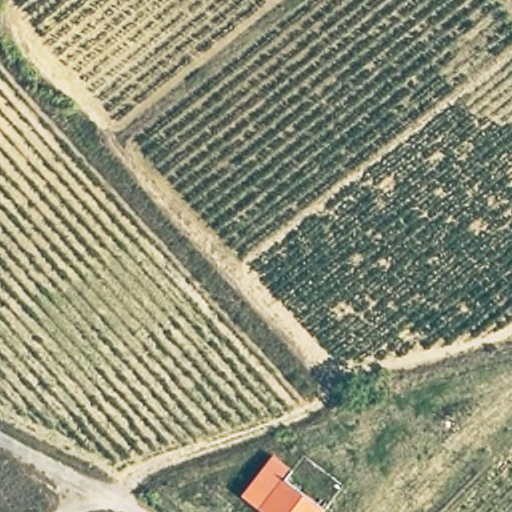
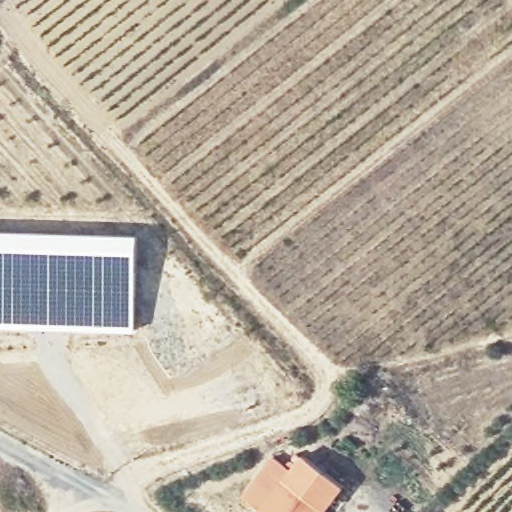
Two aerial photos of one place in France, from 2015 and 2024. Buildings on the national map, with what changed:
new [(139,234),(136,331),(0,328),(0,230),(139,234)]
new [(284,481),(291,469),(301,455),(342,486),(325,511),(284,481)]
unchanged [(291,469),(284,481),(325,511),(325,512),(258,512),(241,499),(271,456),(291,469)]

